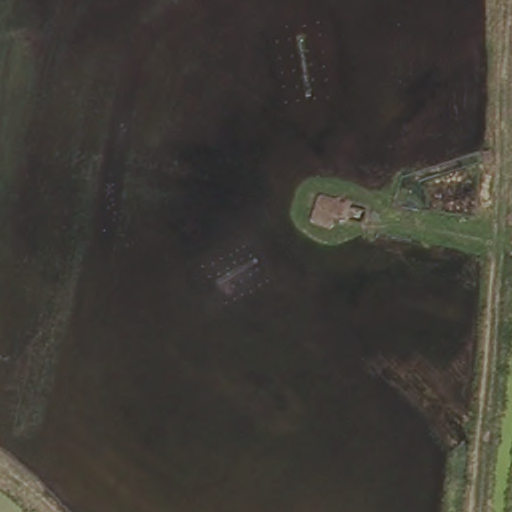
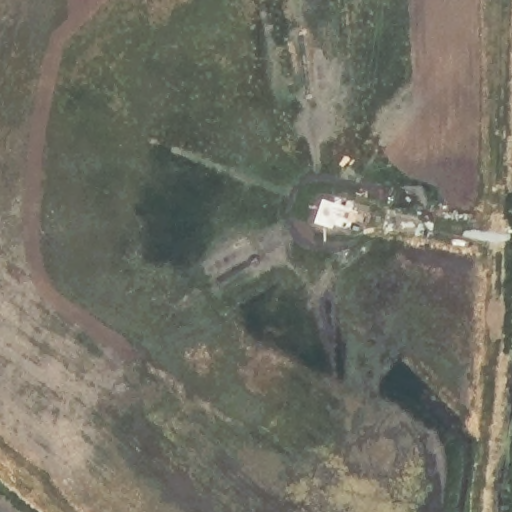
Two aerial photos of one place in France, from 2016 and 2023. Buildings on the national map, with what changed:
unchanged [(318,196),(352,206),(346,227),(339,223),(335,232),(308,222),(318,196)]

